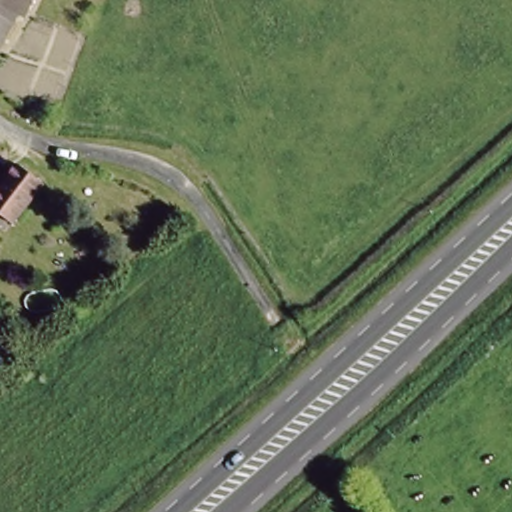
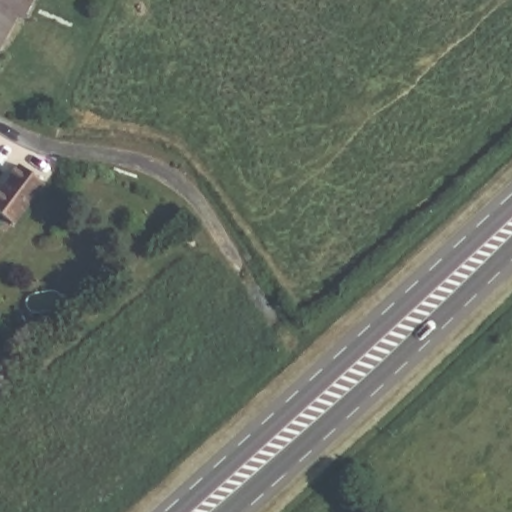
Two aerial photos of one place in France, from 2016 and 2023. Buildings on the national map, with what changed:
unchanged [(28,21),(20,19),(0,51),(0,0),(35,0),(28,21)]
unchanged [(16,166),(44,187),(14,227),(0,218),(0,186),(16,166)]

